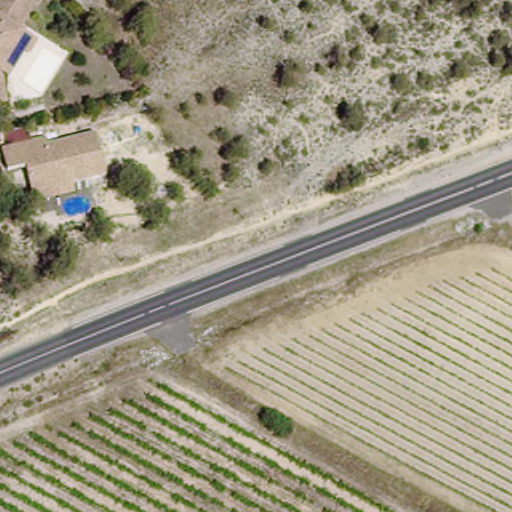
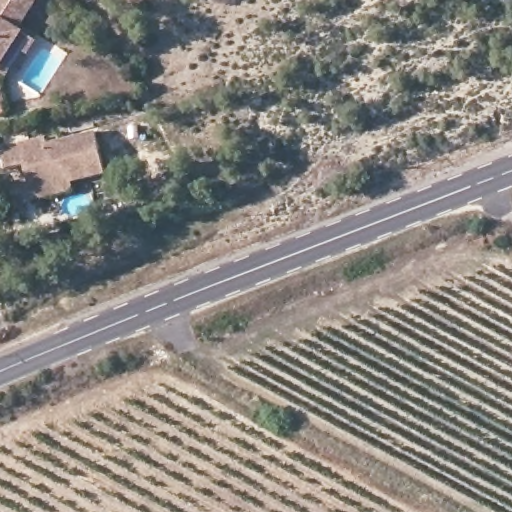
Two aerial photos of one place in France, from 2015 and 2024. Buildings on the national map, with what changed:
unchanged [(24,53),(8,79),(1,75),(0,74),(0,0),(37,0),(19,30),(24,33),(37,41),(28,55),(24,53)]
unchanged [(7,105),(0,106),(0,76),(7,105)]
unchanged [(40,205),(38,196),(31,170),(13,175),(8,155),(50,144),(51,149),(100,136),(111,177),(78,186),(81,195),(40,205)]

